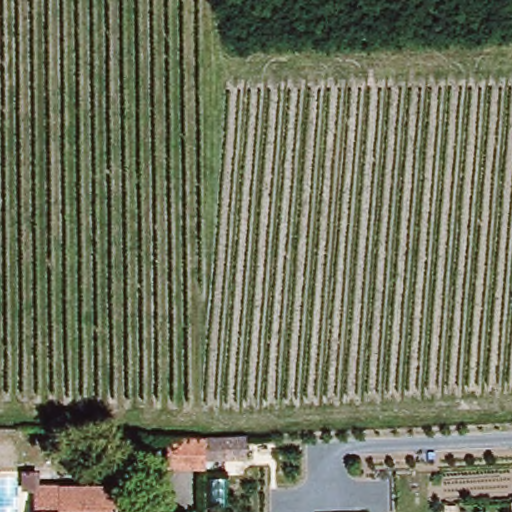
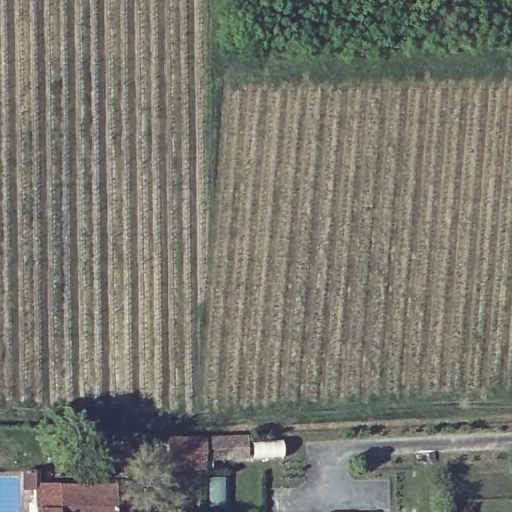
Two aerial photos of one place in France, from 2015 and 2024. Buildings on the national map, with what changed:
unchanged [(246,461),(206,462),(205,470),(166,469),(166,437),(207,436),(247,435),(246,461)]
unchanged [(122,484),(120,512),(29,512),(30,481),(122,484)]

